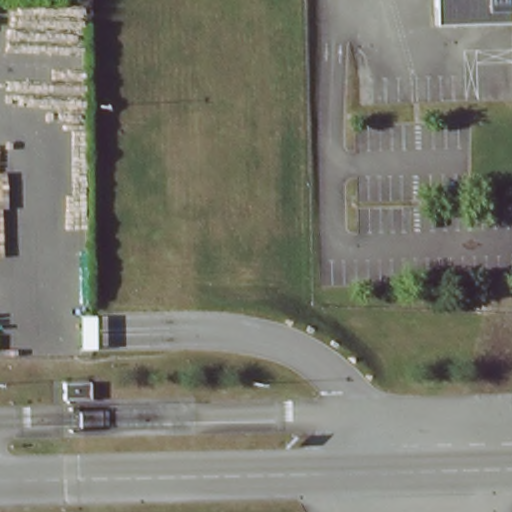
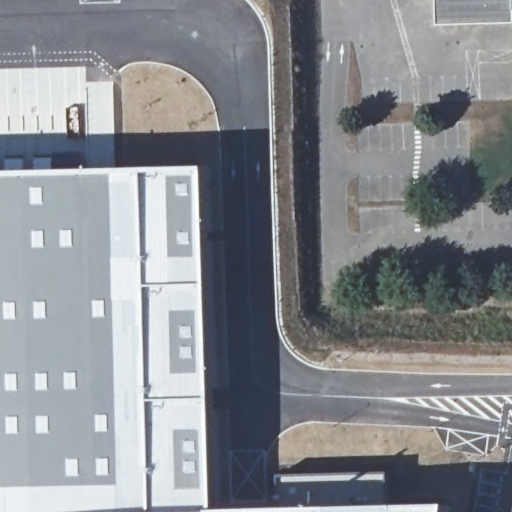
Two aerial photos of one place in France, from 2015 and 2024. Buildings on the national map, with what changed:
new [(85,66),(85,103),(67,104),(67,129),(63,129),(63,124),(56,124),(56,131),(38,132),(0,134),(0,68),(85,66)]
new [(55,169),(208,167),(217,510),(281,507),(390,504),(448,504),(447,512),(0,512),(0,171),(55,169)]
new [(389,471),(390,504),(281,507),(280,475),(389,471)]

